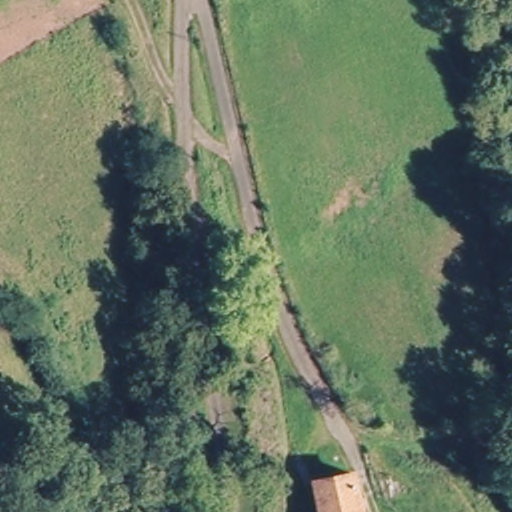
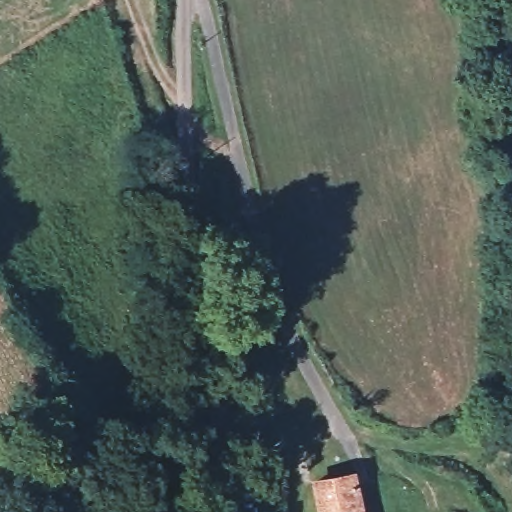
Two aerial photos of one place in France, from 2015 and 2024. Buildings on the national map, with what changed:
unchanged [(368,512),(321,512),(313,485),(357,472),(368,512)]

